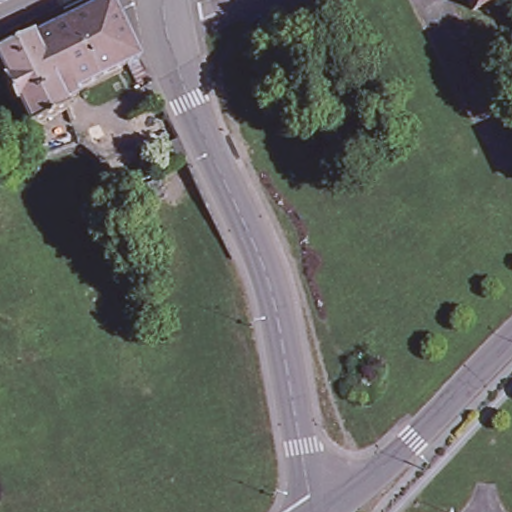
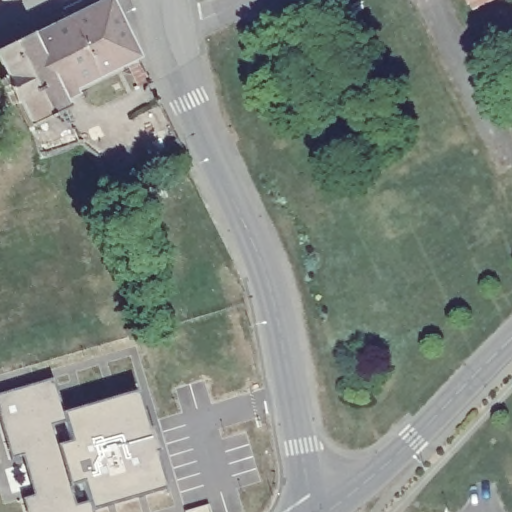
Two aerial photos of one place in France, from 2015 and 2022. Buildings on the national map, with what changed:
unchanged [(73,88),(76,95),(63,101),(66,110),(27,129),(15,103),(11,105),(0,82),(0,80),(3,79),(0,72),(0,49),(30,34),(33,35),(103,0),(110,0),(123,26),(138,56),(96,76),(73,88)]
unchanged [(470,0),(505,0),(476,13),(470,0)]
unchanged [(152,188),(132,199),(125,182),(136,176),(145,172),(152,188)]
new [(12,462),(0,419),(0,396),(55,380),(65,414),(138,392),(150,430),(155,428),(161,453),(157,454),(168,491),(97,512),(27,512),(24,501),(35,497),(23,459),(12,462)]

